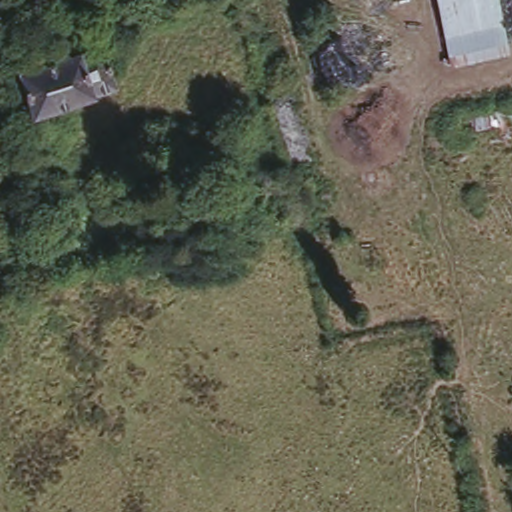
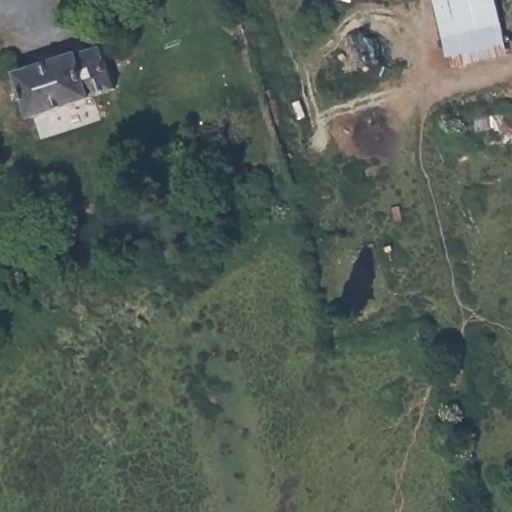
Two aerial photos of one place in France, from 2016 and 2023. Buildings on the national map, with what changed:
unchanged [(511,58),(449,70),(434,0),(500,0),(511,58)]
unchanged [(121,81),(97,89),(97,91),(39,110),(24,67),(84,47),(84,49),(93,46),(109,41),(121,81)]

